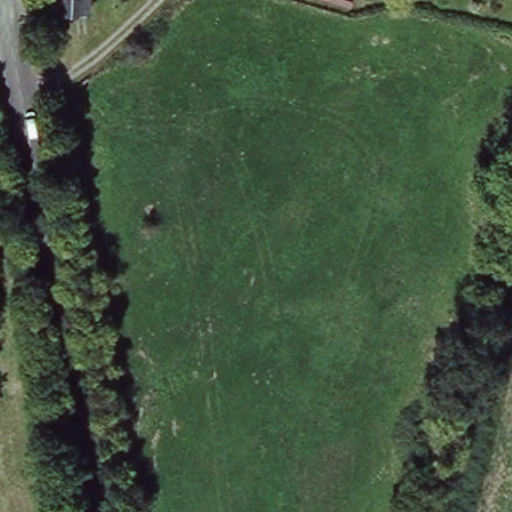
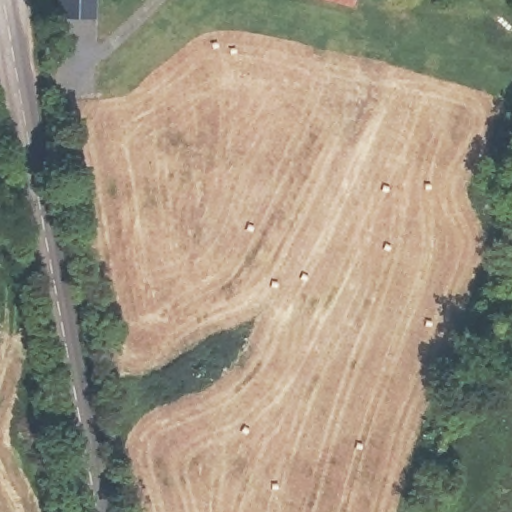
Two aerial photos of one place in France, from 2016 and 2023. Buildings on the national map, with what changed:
unchanged [(62,0),(91,0),(90,7),(61,5),(62,0)]
unchanged [(352,9),(320,0),(354,0),(352,9)]
unchanged [(490,188),(509,194),(501,220),(482,214),(490,188)]

